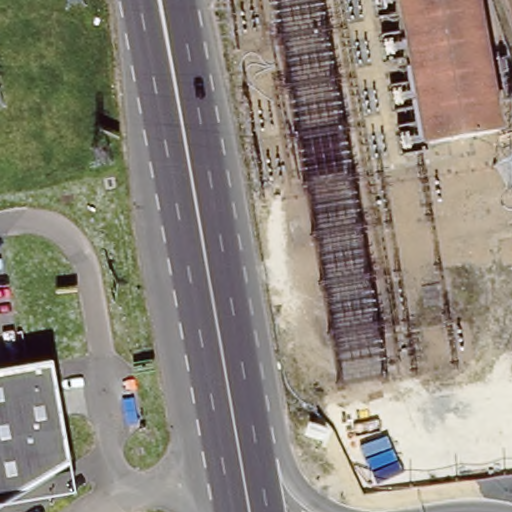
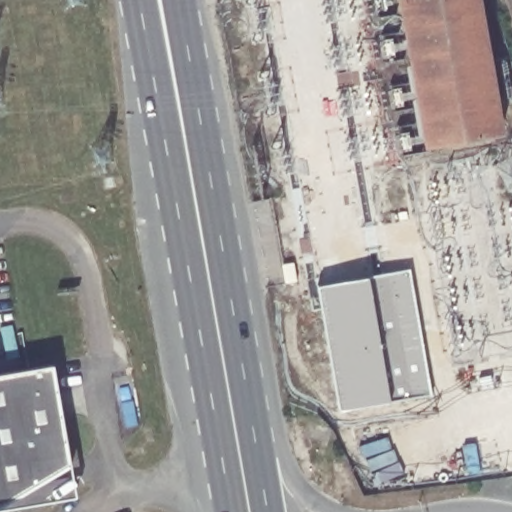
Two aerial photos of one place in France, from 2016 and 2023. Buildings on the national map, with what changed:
unchanged [(425,145),(400,0),(478,0),(500,131),(425,145)]
new [(432,393),(390,400),(338,408),(316,285),(368,274),(410,267),(432,393)]
unchanged [(0,509),(0,379),(58,369),(75,470),(41,502),(0,509)]

